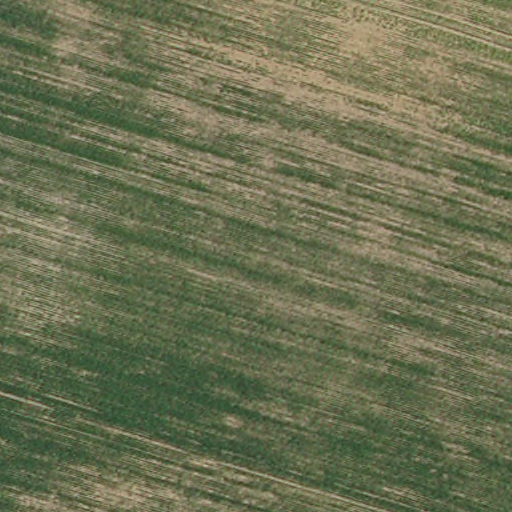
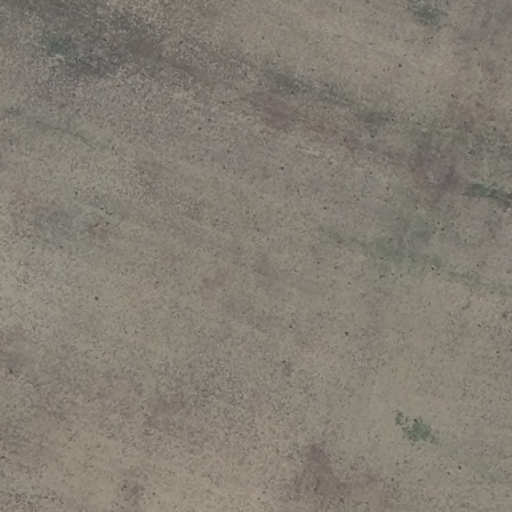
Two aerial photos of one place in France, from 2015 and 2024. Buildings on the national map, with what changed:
[]

